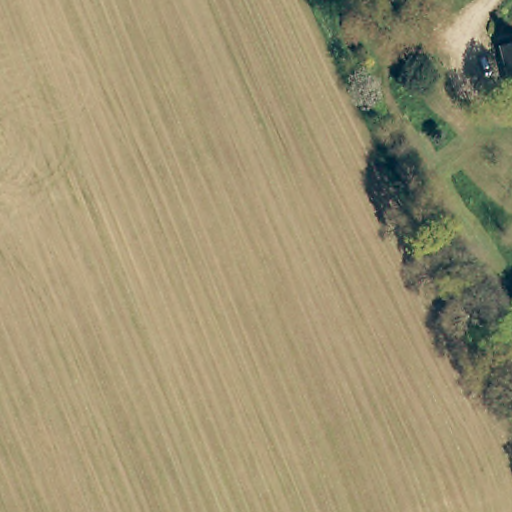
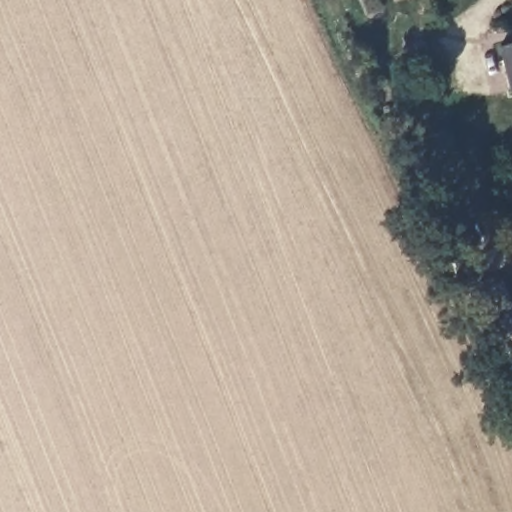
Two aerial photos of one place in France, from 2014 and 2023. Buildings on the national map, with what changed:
unchanged [(512,89),(510,89),(500,41),(512,38),(512,89)]

